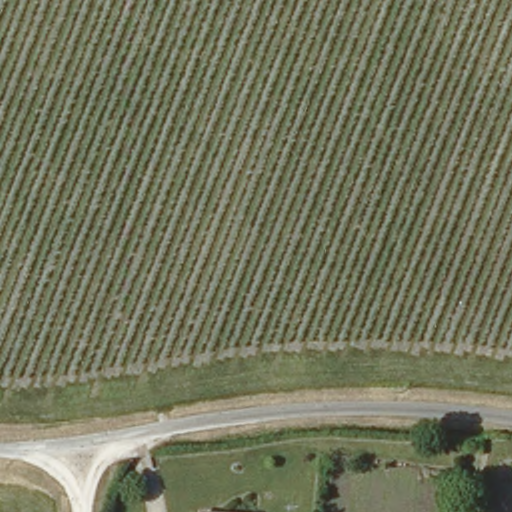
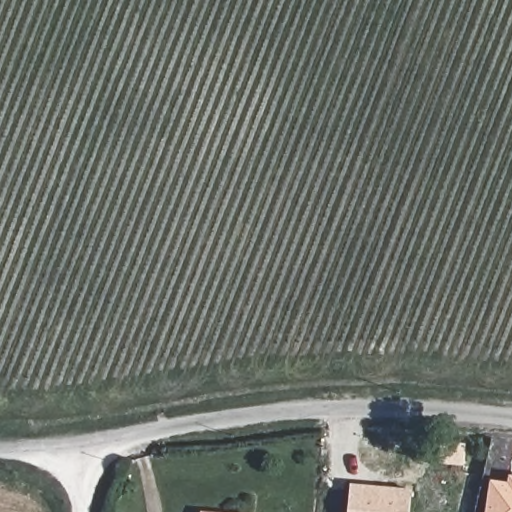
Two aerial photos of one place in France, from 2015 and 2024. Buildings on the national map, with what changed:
new [(492,479),(508,481),(509,475),(512,475),(512,512),(486,512),(492,479)]
new [(352,484),(413,490),(411,512),(350,512),(352,484)]
unchanged [(200,510),(220,512),(200,512),(200,510)]

